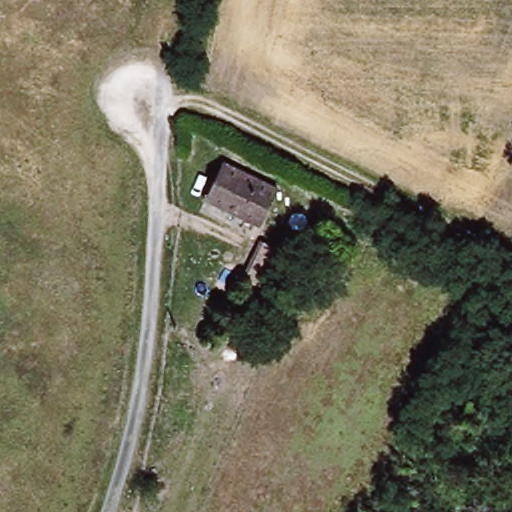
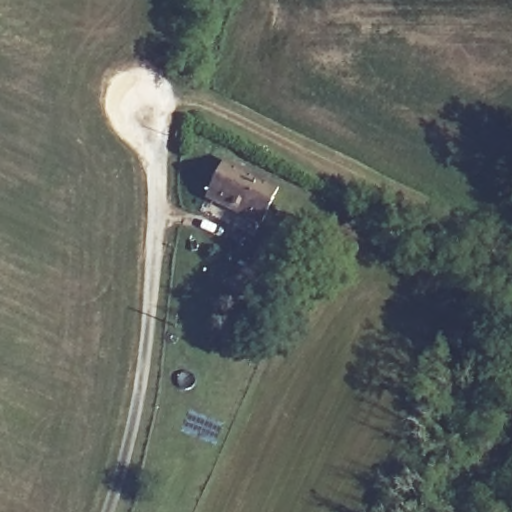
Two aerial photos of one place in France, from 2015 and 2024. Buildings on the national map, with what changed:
unchanged [(223,162),(277,189),(260,222),(207,195),(223,162)]
unchanged [(263,289),(243,278),(263,239),(299,258),(289,277),(273,268),(263,289)]

